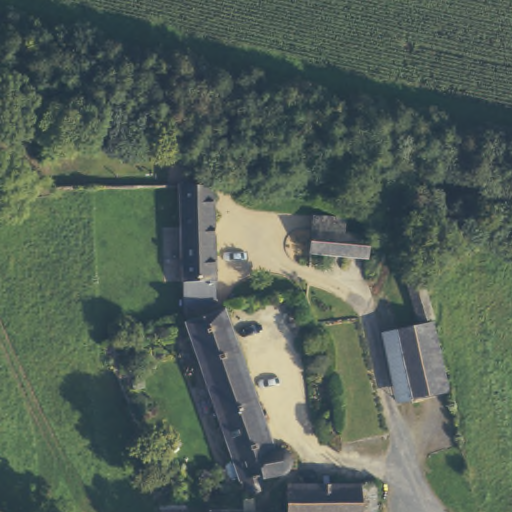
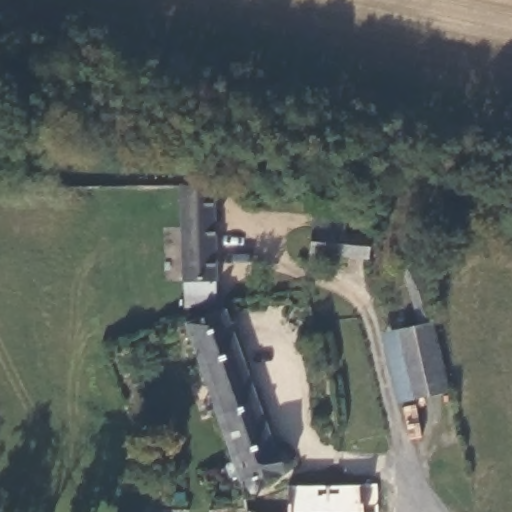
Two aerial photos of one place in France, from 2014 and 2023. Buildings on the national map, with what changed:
unchanged [(214,185),(219,302),(189,304),(182,185),(214,185)]
unchanged [(363,228),(364,255),(311,254),(312,227),(363,228)]
unchanged [(189,322),(224,309),(278,457),(281,456),(285,456),(287,457),(290,457),(292,458),(293,459),(295,461),(296,463),(296,464),(296,465),(296,467),(296,469),(296,471),(295,473),(293,475),(292,476),(292,477),(291,479),(264,483),(263,485),(263,488),(262,489),(262,492),(261,494),(259,495),(257,495),(255,495),(252,493),(251,490),(250,488),(250,486),(249,484),(247,483),(246,483),(244,483),(240,484),(237,473),(230,475),(226,461),(231,459),(189,322)]
unchanged [(432,328),(444,393),(412,400),(398,335),(432,328)]
unchanged [(398,335),(412,400),(397,403),(383,338),(398,335)]
unchanged [(375,488),(376,512),(289,512),(290,488),(375,488)]

